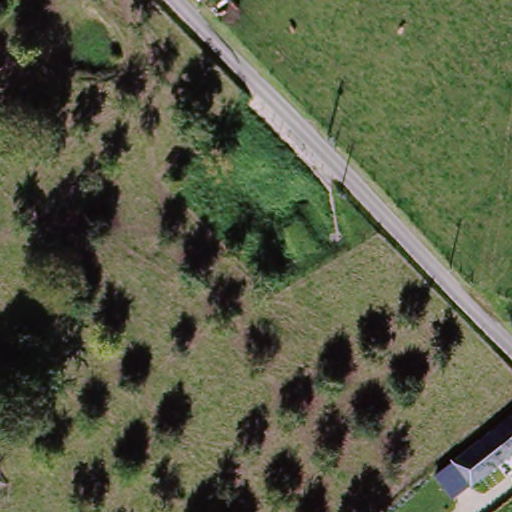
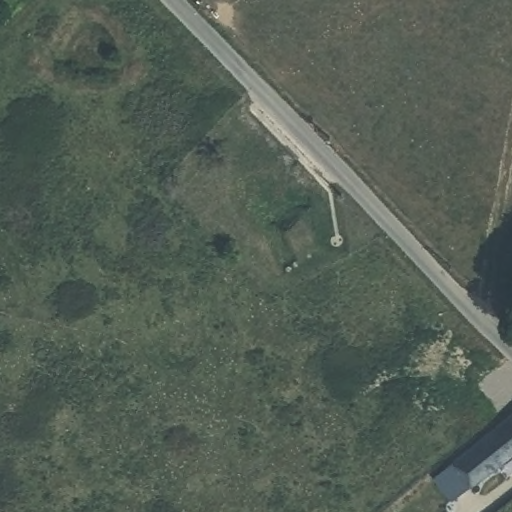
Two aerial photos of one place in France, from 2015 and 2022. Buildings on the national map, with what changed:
unchanged [(465,493),(451,473),(512,423),(512,457),(465,493)]

